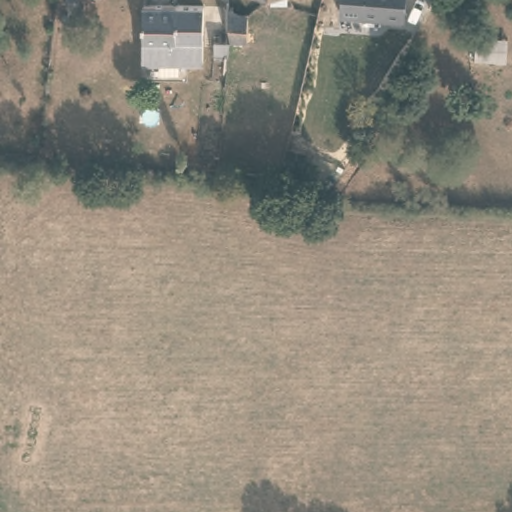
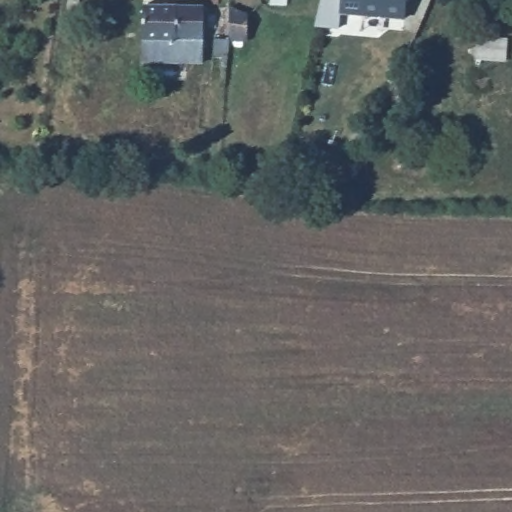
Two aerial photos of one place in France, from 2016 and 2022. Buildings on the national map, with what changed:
unchanged [(145,55),(144,0),(204,0),(204,55),(145,55)]
unchanged [(272,5),(272,0),(289,0),(288,4),(272,5)]
unchanged [(342,0),(405,0),(403,20),(341,13),(342,0)]
unchanged [(248,40),(231,39),(233,4),(249,12),(248,40)]
unchanged [(215,38),(231,39),(230,57),(215,55),(215,38)]

